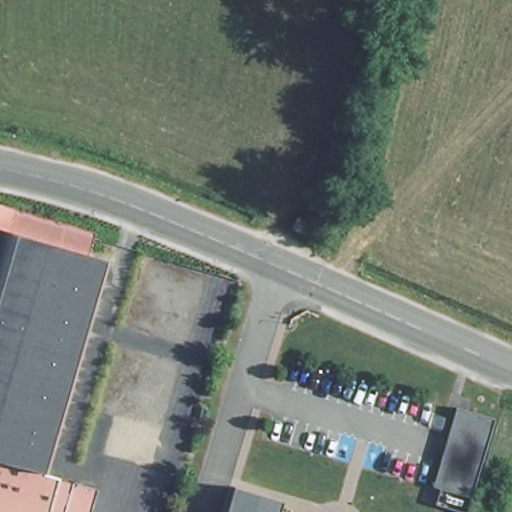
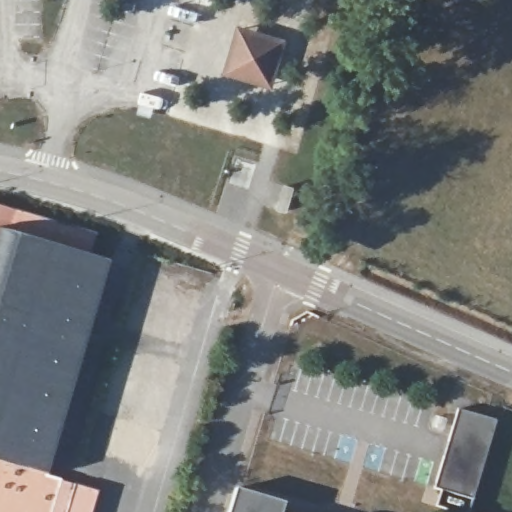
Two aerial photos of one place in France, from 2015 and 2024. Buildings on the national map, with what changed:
new [(237,25),(288,39),(273,89),(223,75),(237,25)]
unchanged [(85,251),(106,258),(46,470),(57,473),(45,512),(0,512),(0,202),(91,230),(85,251)]
unchanged [(473,512),(443,503),(447,487),(440,485),(464,405),(503,417),(475,512),(473,512)]
unchanged [(87,512),(59,512),(70,477),(95,485),(87,512)]
unchanged [(286,500),(282,512),(229,512),(237,485),(286,500)]

